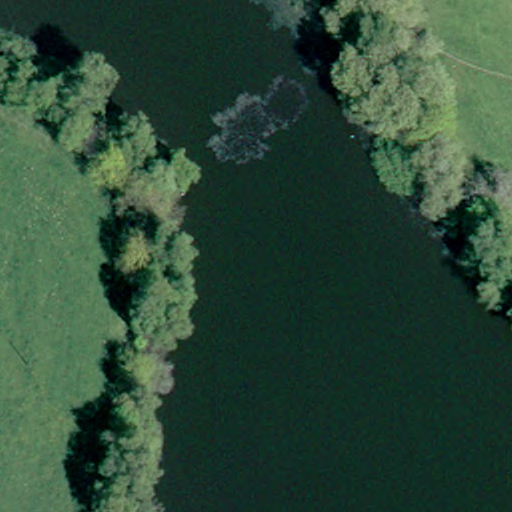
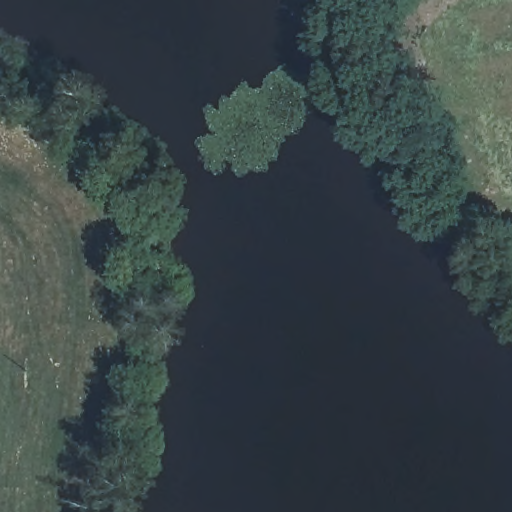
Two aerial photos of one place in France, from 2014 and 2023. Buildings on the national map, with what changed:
[]

